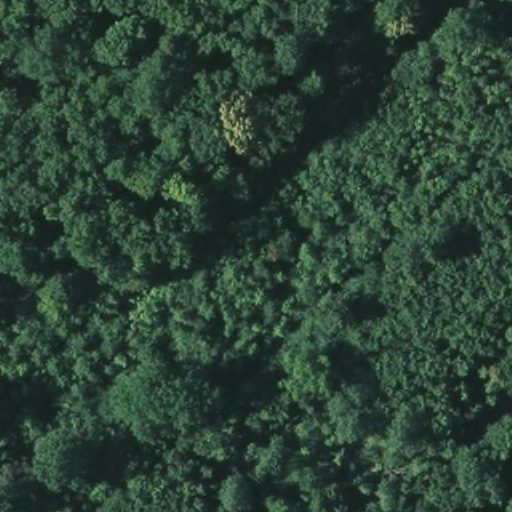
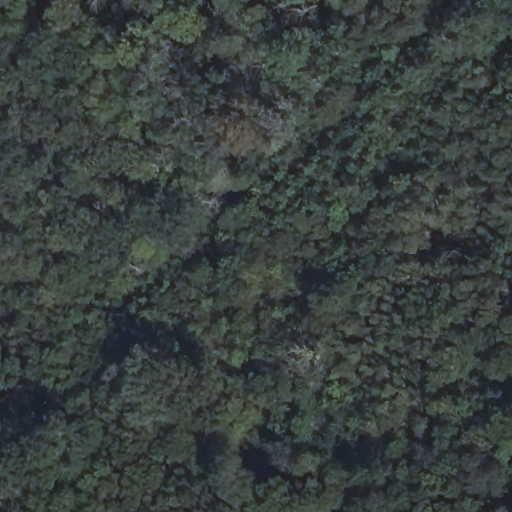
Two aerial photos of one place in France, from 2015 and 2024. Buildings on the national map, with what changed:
unchanged [(107,340),(127,291),(177,310),(167,390),(107,340)]

